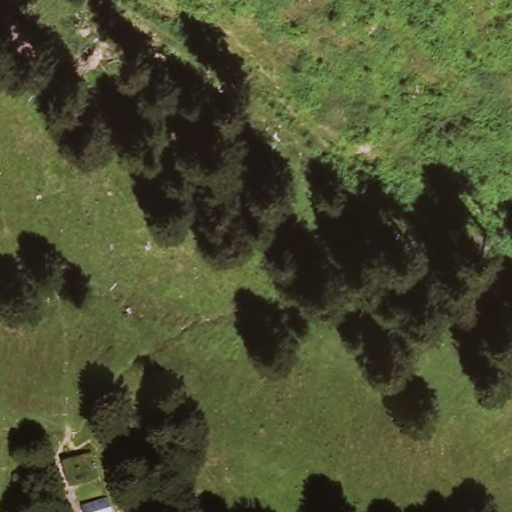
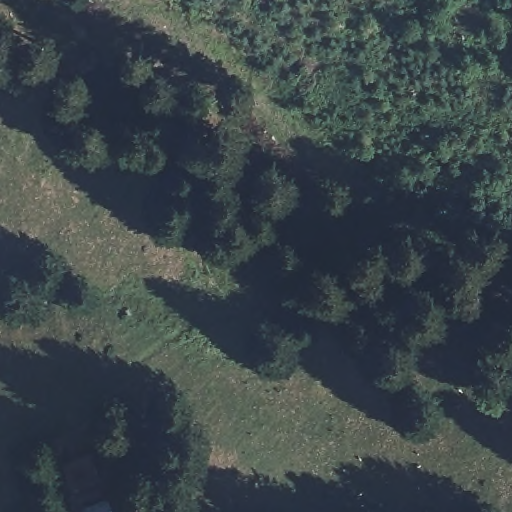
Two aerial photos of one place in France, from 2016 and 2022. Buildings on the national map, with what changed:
unchanged [(75,459),(92,457),(98,477),(67,486),(61,463),(75,459)]
unchanged [(94,508),(108,504),(111,512),(78,512),(94,508)]

